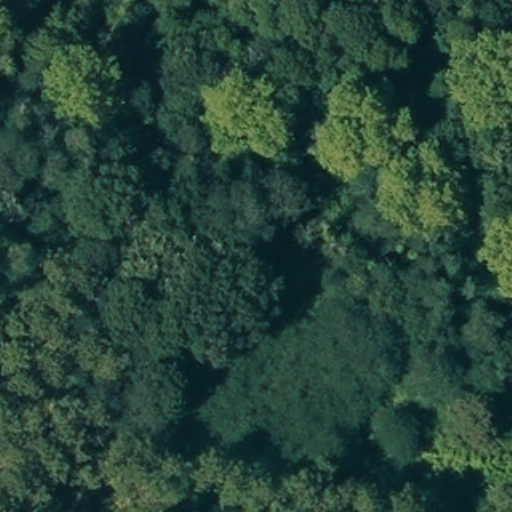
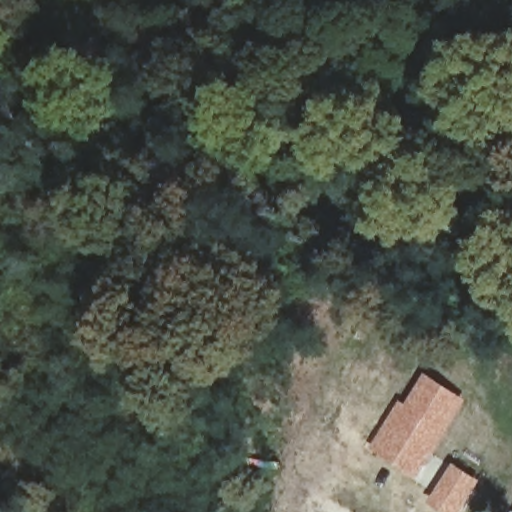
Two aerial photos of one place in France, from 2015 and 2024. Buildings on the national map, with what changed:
demolished [(350,366),(372,376),(365,391),(344,382),(350,366)]
new [(399,400),(405,403),(425,372),(468,400),(416,480),(367,448),(399,400)]
demolished [(415,469),(380,455),(406,392),(440,407),(415,469)]
demolished [(488,453),(482,465),(469,458),(475,447),(488,453)]
new [(481,481),(461,512),(439,512),(428,505),(453,463),(481,481)]

